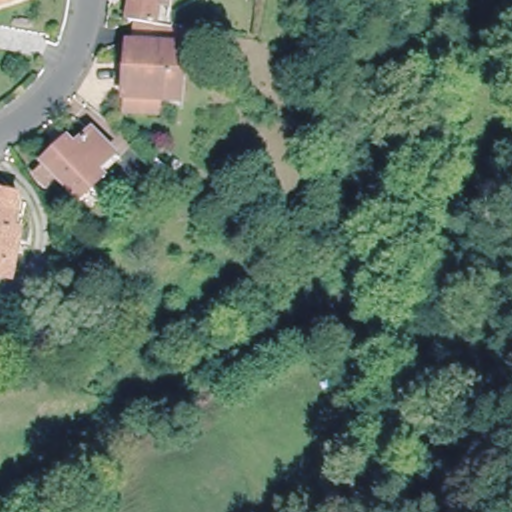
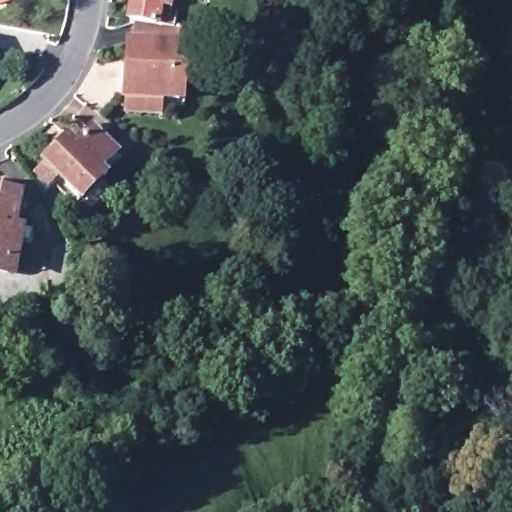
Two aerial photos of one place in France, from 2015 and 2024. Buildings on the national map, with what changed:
unchanged [(0,7),(0,0),(20,0),(0,7)]
unchanged [(156,25),(137,21),(131,20),(134,0),(161,0),(156,25)]
unchanged [(126,111),(127,97),(124,97),(126,67),(129,43),(135,43),(137,21),(156,25),(190,31),(188,50),(184,50),(179,102),(160,100),(159,114),(126,111)]
unchanged [(34,177),(43,167),(41,165),(65,141),(72,148),(89,131),(111,155),(116,161),(102,175),(77,200),(55,179),(43,191),(34,177)]
unchanged [(0,275),(0,191),(17,194),(9,236),(16,238),(11,265),(9,276),(0,275)]

